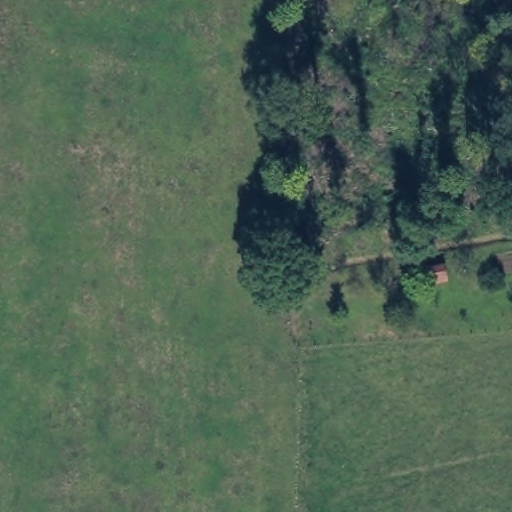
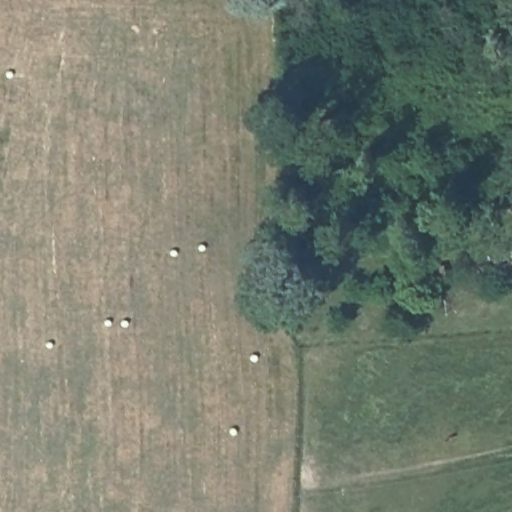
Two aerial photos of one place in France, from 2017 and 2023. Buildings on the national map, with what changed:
[]

